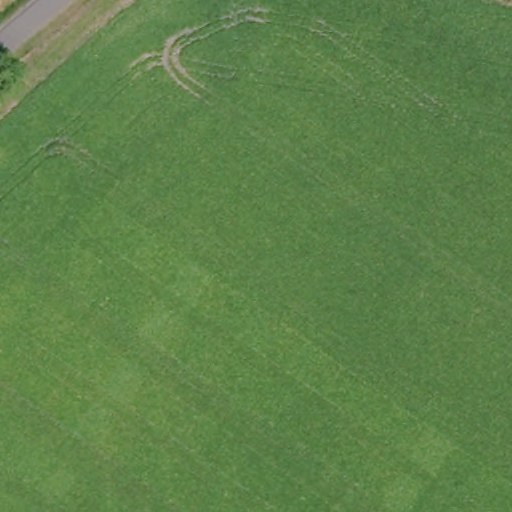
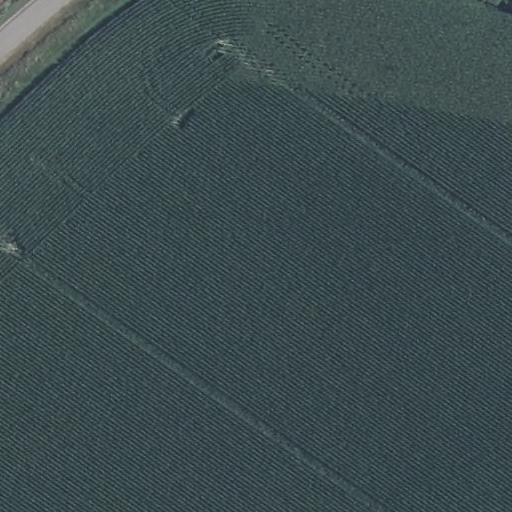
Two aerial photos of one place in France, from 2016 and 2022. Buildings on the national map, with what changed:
[]

